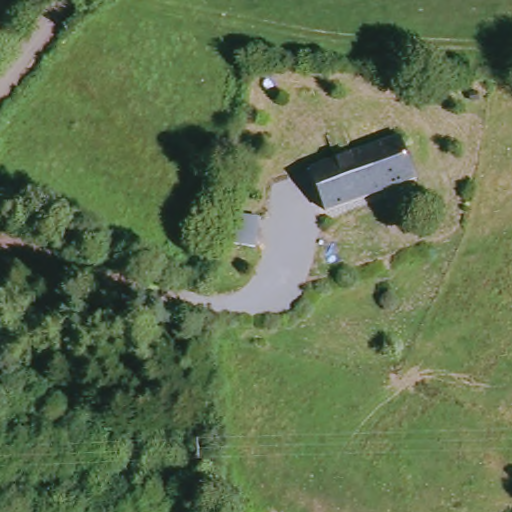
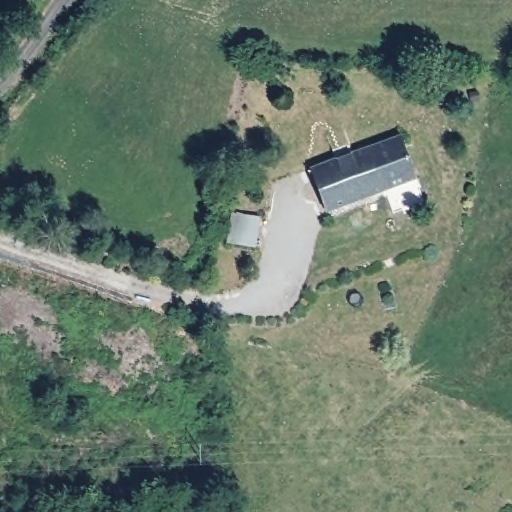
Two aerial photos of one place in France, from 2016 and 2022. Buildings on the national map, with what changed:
unchanged [(329,211),(314,169),(399,136),(417,176),(329,211)]

